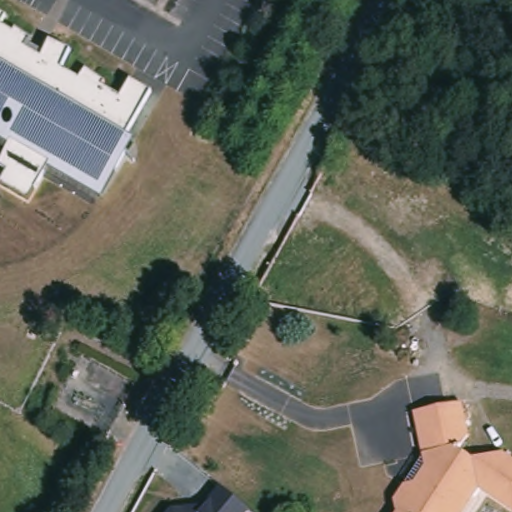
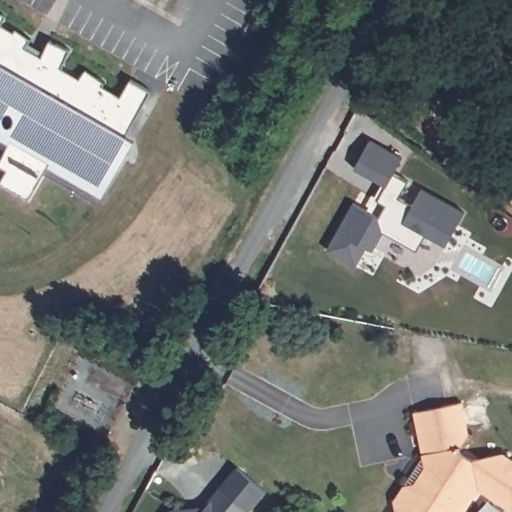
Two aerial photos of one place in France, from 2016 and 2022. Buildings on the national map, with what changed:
unchanged [(0,22),(0,14),(4,16),(0,22)]
unchanged [(134,140),(99,205),(44,174),(29,199),(0,183),(0,180),(5,171),(0,168),(0,161),(5,151),(0,147),(0,23),(14,31),(15,29),(30,38),(29,42),(44,53),(50,41),(70,52),(60,68),(79,78),(85,70),(104,83),(102,85),(120,96),(130,79),(151,91),(126,135),(134,140)]
new [(425,234),(415,250),(381,231),(372,250),(365,245),(355,265),(327,249),(353,204),(367,211),(381,181),(355,167),(372,141),(401,158),(393,173),(406,181),(397,197),(411,206),(421,190),(463,212),(443,245),(425,234)]
unchanged [(395,498),(405,481),(413,482),(425,463),(413,410),(464,401),(471,434),(459,448),(473,457),(499,453),(512,461),(512,506),(476,483),(457,512),(400,512),(401,511),(395,498)]
unchanged [(204,507),(220,488),(249,512),(168,512),(170,510),(204,507)]

